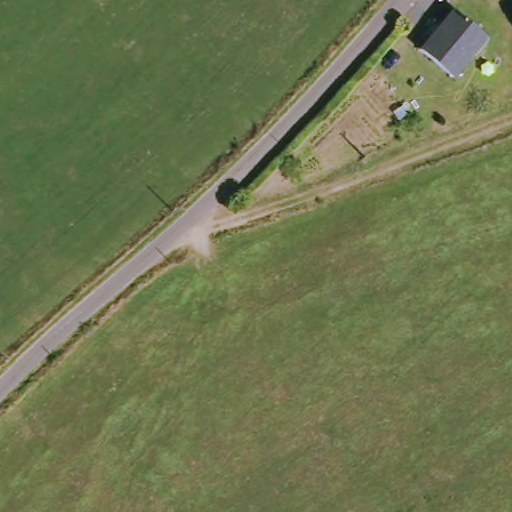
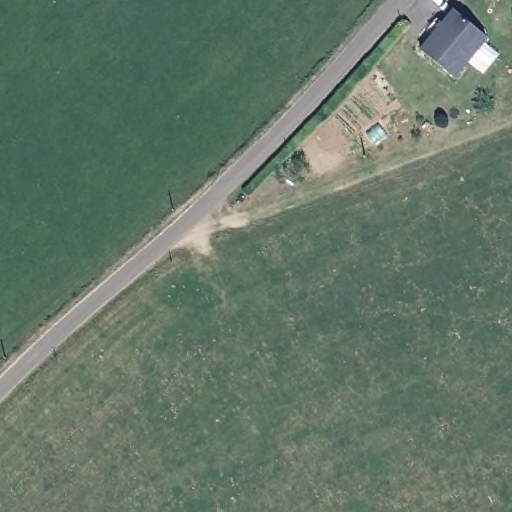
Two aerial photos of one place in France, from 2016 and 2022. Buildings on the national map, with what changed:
unchanged [(423,49),(457,9),(492,38),(458,78),(423,49)]

